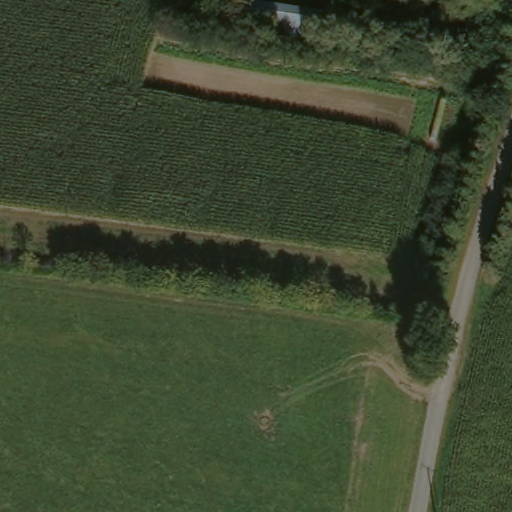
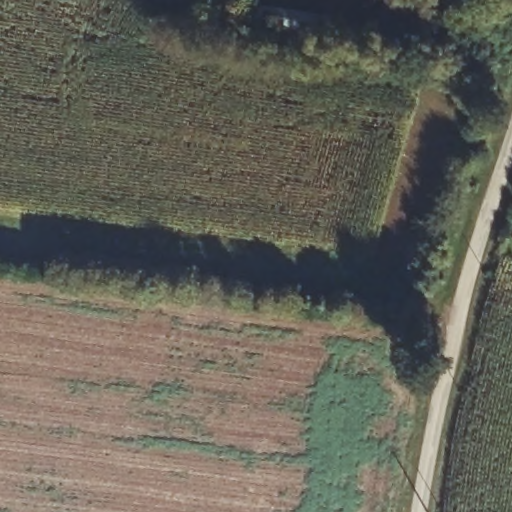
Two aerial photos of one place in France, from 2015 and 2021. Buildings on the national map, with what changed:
unchanged [(239,40),(243,7),(323,16),(320,51),(239,40)]

